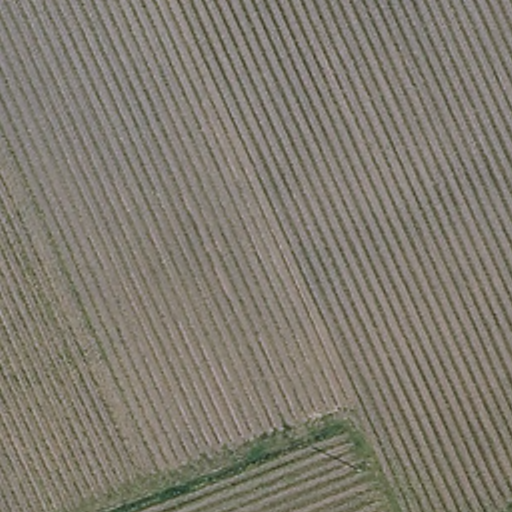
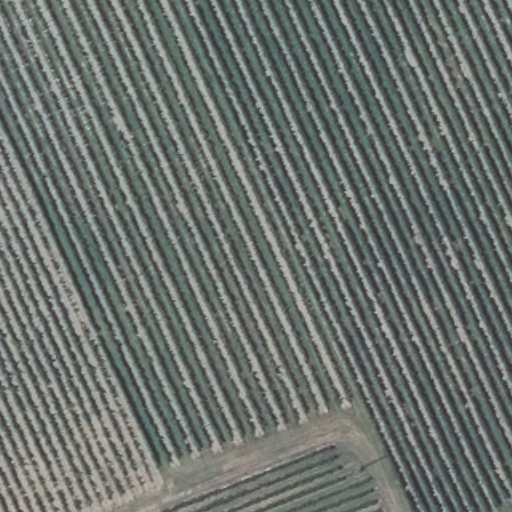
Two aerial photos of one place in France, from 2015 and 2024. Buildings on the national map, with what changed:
[]

